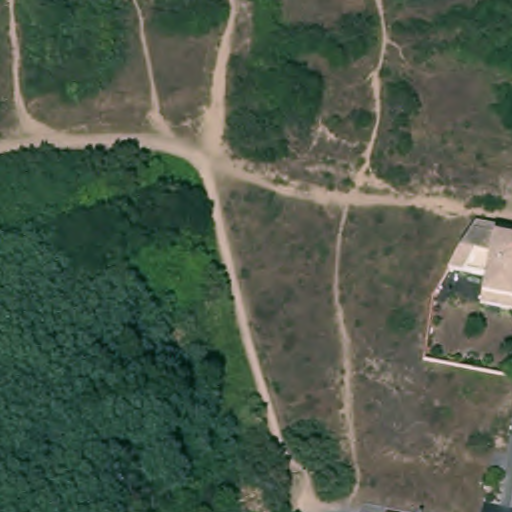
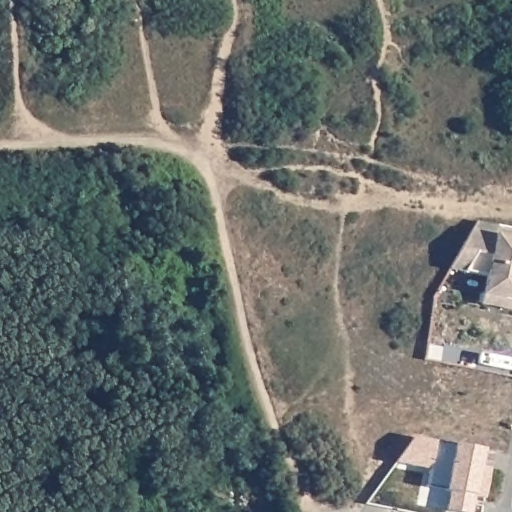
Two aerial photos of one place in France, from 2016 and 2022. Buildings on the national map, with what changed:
unchanged [(486,293),(491,271),(452,263),(473,229),(476,226),(512,233),(512,305),(485,300),(486,293)]
new [(476,512),(462,512),(451,510),(454,491),(430,486),(433,469),(398,462),(418,434),(487,449),(484,466),(494,467),(490,491),(489,498),(479,496),(476,512)]

